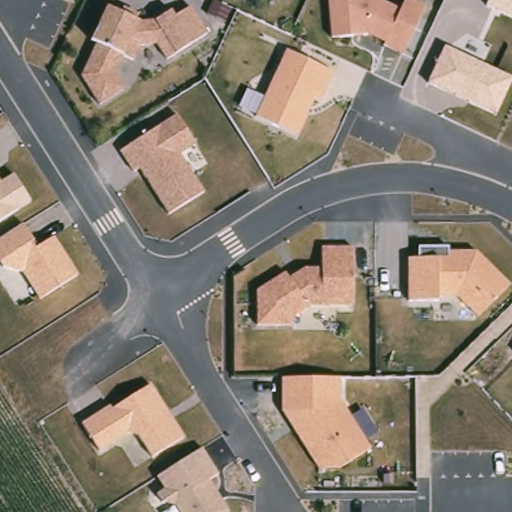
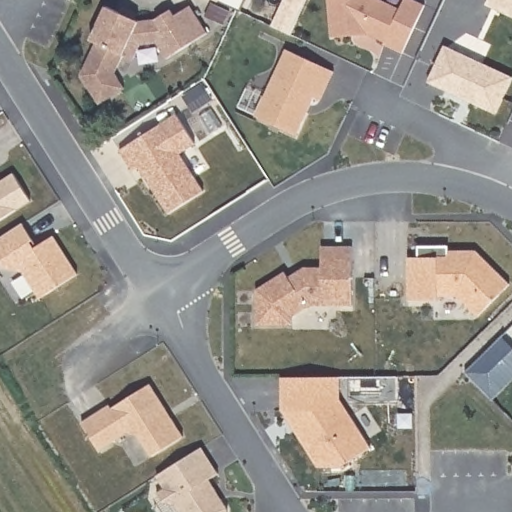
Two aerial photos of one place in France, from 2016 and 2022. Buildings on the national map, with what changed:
unchanged [(402,54),(383,46),(384,42),(366,34),(331,38),(326,0),(378,0),(400,9),(404,0),(407,0),(424,7),(402,54)]
unchanged [(489,0),(512,0),(512,16),(488,4),(489,0)]
unchanged [(207,35),(166,59),(159,48),(140,50),(132,61),(126,59),(117,78),(118,80),(123,89),(98,103),(81,79),(96,44),(90,42),(105,5),(136,20),(159,21),(187,4),(207,35)]
unchanged [(496,114),(427,81),(445,45),(512,76),(512,80),(496,114)]
unchanged [(334,74),(320,104),(312,100),(295,135),(255,118),(286,53),(334,74)]
unchanged [(182,154),(206,190),(170,215),(139,168),(134,171),(120,149),(177,113),(197,143),(182,154)]
unchanged [(0,177),(2,180),(16,172),(34,202),(0,223),(0,177)]
unchanged [(25,273),(5,269),(0,262),(0,238),(24,224),(35,241),(34,243),(37,248),(56,235),(80,275),(41,299),(25,273)]
unchanged [(446,247),(446,251),(474,251),(508,285),(478,315),(459,300),(408,303),(408,302),(406,260),(417,259),(417,248),(446,247)]
unchanged [(289,278),(304,270),(321,270),(320,249),(350,249),(353,308),(323,309),(308,309),(291,319),(291,327),(256,326),(255,290),(284,273),(289,278)]
new [(494,399),(465,373),(502,337),(512,346),(512,381),(494,399)]
unchanged [(340,404),(370,449),(340,469),(316,468),(284,415),(282,379),(340,382),(340,404)]
unchanged [(151,458),(136,434),(124,434),(100,449),(81,421),(111,403),(114,408),(152,384),(187,437),(151,458)]
unchanged [(220,473),(210,479),(230,510),(230,512),(180,512),(176,504),(163,502),(156,493),(165,487),(158,476),(205,447),(220,473)]

